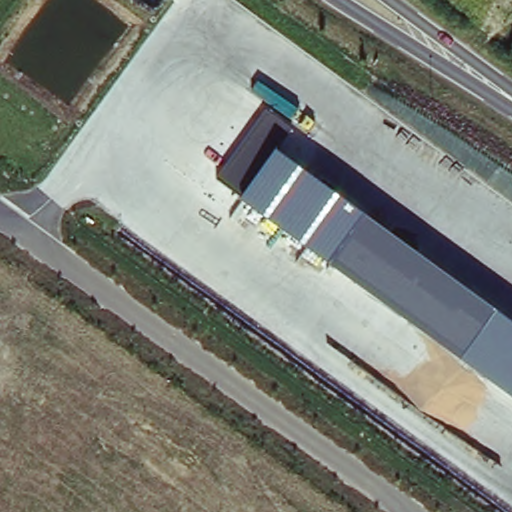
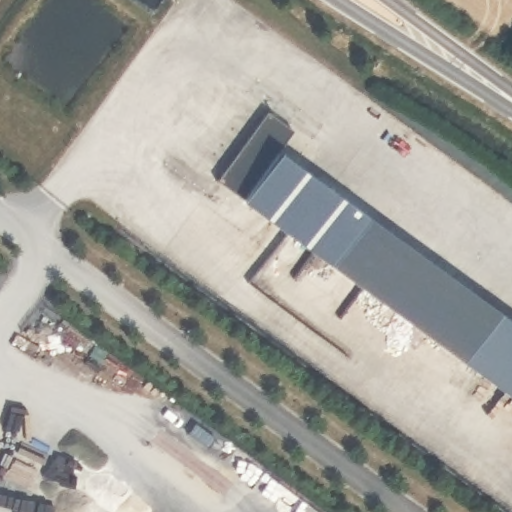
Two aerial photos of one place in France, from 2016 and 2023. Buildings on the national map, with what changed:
unchanged [(214,179),(263,110),(294,131),(278,151),(512,323),(512,396),(240,199),(214,179)]

